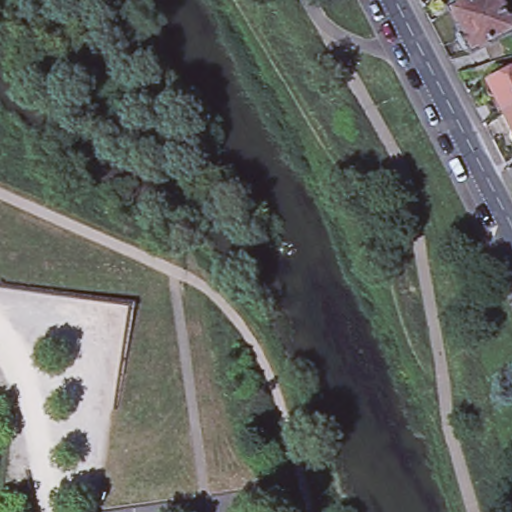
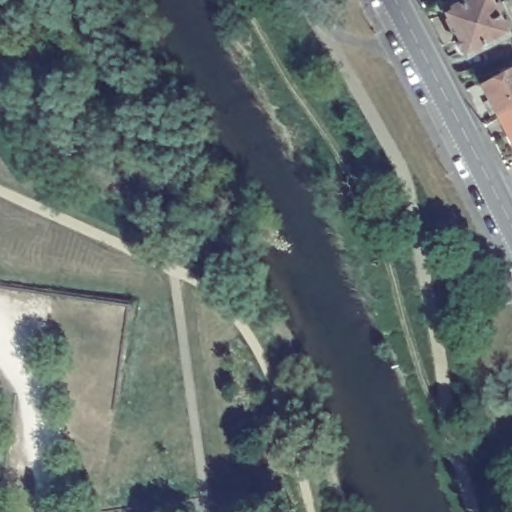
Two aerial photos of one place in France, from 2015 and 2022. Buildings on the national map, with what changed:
unchanged [(466,0),(503,0),(512,15),(512,32),(472,55),(447,9),(466,0)]
unchanged [(512,67),(512,138),(481,82),(512,67)]

